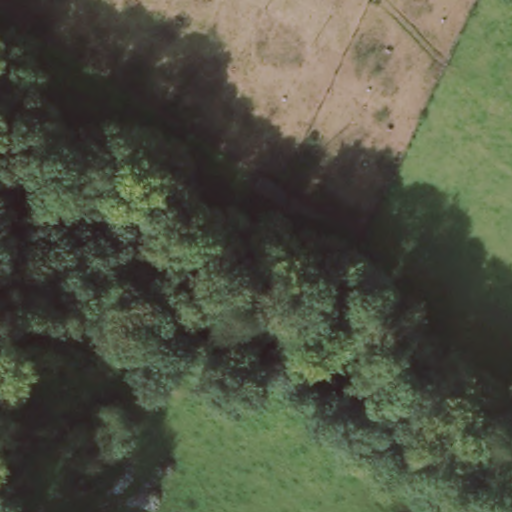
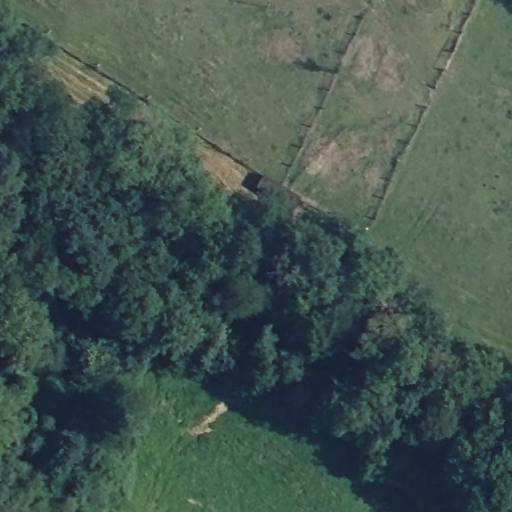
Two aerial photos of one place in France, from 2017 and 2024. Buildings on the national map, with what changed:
unchanged [(251,192),(260,177),(300,197),(290,214),(251,192)]

